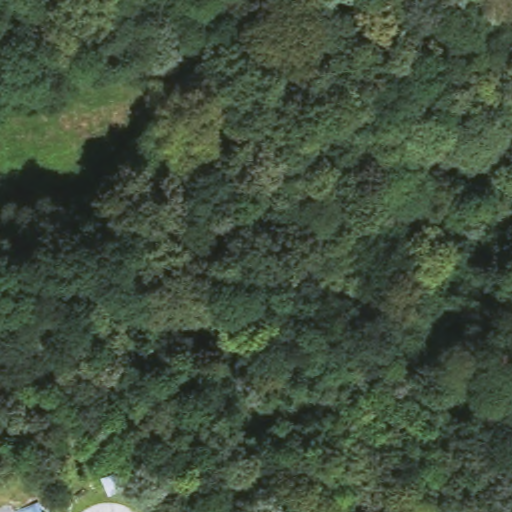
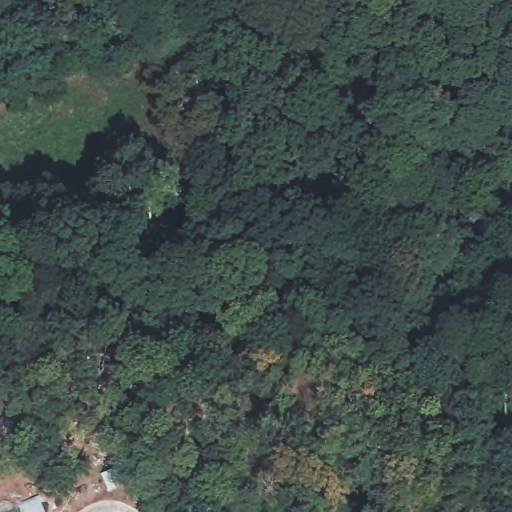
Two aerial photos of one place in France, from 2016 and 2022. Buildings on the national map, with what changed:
unchanged [(4,493),(10,512),(0,512),(0,495),(4,493)]

